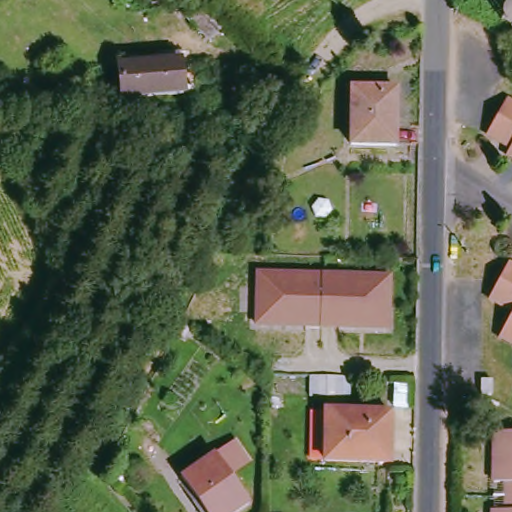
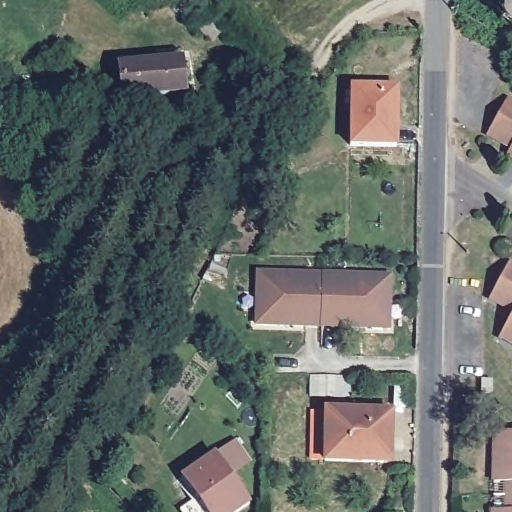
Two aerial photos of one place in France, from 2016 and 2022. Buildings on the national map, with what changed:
unchanged [(172,3),(176,0),(196,0),(231,34),(214,49),(172,3)]
unchanged [(157,66),(157,57),(177,56),(180,97),(117,102),(116,69),(157,66)]
unchanged [(352,144),(354,92),(400,93),(397,146),(352,144)]
unchanged [(507,143),(492,134),(512,100),(512,146),(507,143)]
unchanged [(491,299),(510,263),(512,265),(512,310),(491,299)]
unchanged [(254,268),(392,273),(392,330),(254,327),(254,268)]
unchanged [(501,337),(512,317),(512,343),(501,337)]
unchanged [(326,376),(325,368),(339,369),(339,376),(349,377),(349,402),(311,399),(312,383),(307,383),(305,395),(278,396),(277,374),(326,376)]
unchanged [(476,385),(487,385),(487,393),(487,401),(477,401),(476,386),(476,385)]
unchanged [(397,413),(397,464),(321,462),(322,412),(397,413)]
unchanged [(493,511),(494,482),(495,433),(512,433),(512,512),(493,512),(493,511)]
unchanged [(216,456),(251,503),(239,512),(209,512),(184,478),(216,456)]

